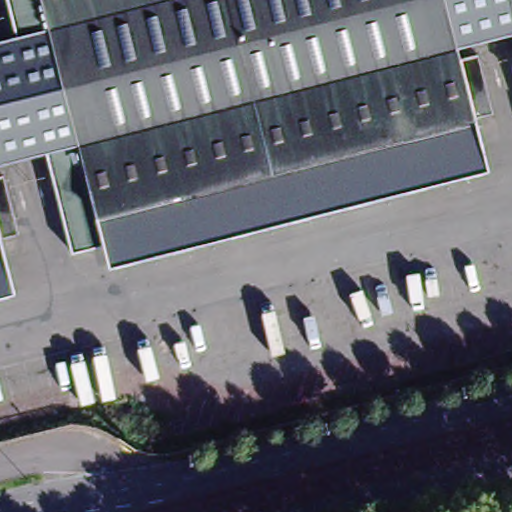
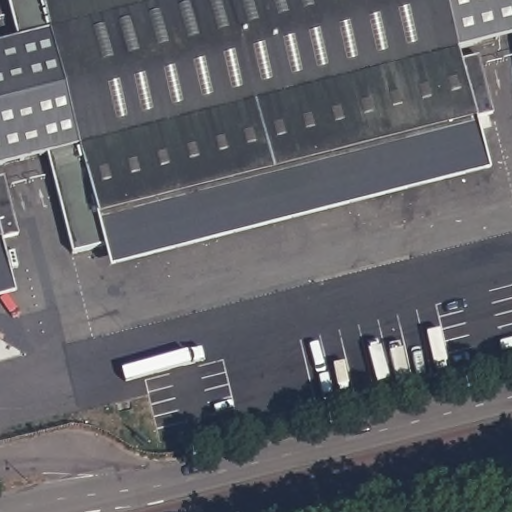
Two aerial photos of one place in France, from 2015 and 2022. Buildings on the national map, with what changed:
unchanged [(11,0),(40,0),(103,247),(76,256),(50,155),(0,167),(0,45),(21,41),(11,0)]
unchanged [(458,49),(490,175),(109,271),(103,247),(40,0),(446,0),(458,49)]
unchanged [(512,10),(512,39),(458,49),(446,0),(510,0),(512,10)]
unchanged [(510,0),(512,0),(512,10),(510,0)]
unchanged [(19,237),(7,240),(0,241),(0,179),(3,178),(19,237)]
unchanged [(21,295),(0,300),(0,241),(7,240),(21,295)]

